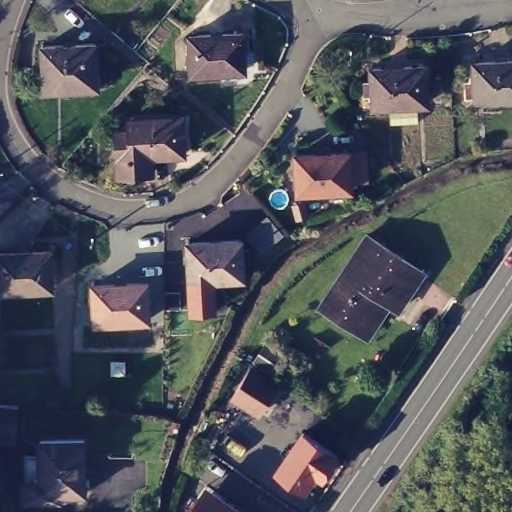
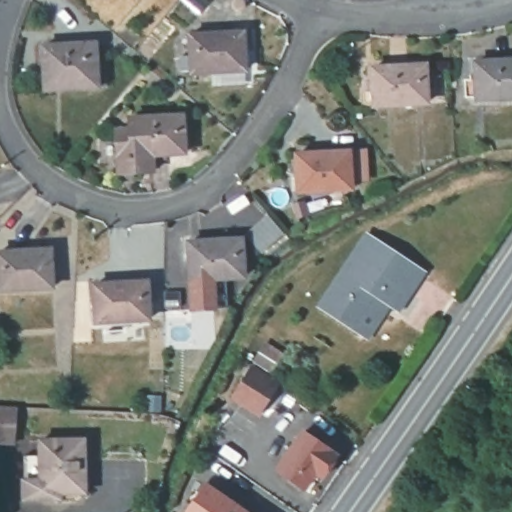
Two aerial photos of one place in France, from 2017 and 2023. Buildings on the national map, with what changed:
unchanged [(242,30),(242,41),(248,41),(249,48),(252,48),(252,61),(244,61),(244,66),(191,69),(189,31),(242,30)]
unchanged [(42,43),(95,39),(103,39),(105,83),(97,84),(45,86),(42,43)]
unchanged [(480,96),(480,94),(469,95),(469,78),(480,76),(479,59),(512,57),(512,94),(480,96)]
unchanged [(362,90),(367,90),(366,76),(372,76),(372,64),(424,61),(426,99),(373,102),(362,102),(362,90)]
unchanged [(187,118),(187,156),(156,156),(156,174),(122,174),(122,131),(134,131),(134,120),(187,118)]
unchanged [(348,147),(350,185),(297,188),(295,150),(348,147)]
unchanged [(355,327),(319,303),(365,232),(422,269),(397,307),(388,301),(365,334),(355,327)]
unchanged [(245,236),(247,273),(195,276),(193,239),(245,236)]
unchanged [(2,287),(0,256),(0,250),(53,246),(55,284),(2,287)]
unchanged [(150,278),(152,316),(100,318),(98,281),(150,278)]
unchanged [(275,388),(259,415),(231,397),(248,370),(275,388)]
unchanged [(14,439),(0,438),(0,402),(17,403),(14,439)]
unchanged [(313,470),(302,486),(276,467),(302,429),(336,452),(320,475),(313,470)]
unchanged [(22,457),(39,457),(39,443),(82,441),(84,493),(58,495),(58,500),(40,501),(24,501),(22,457)]
unchanged [(182,509),(204,483),(247,512),(183,512),(182,509)]

